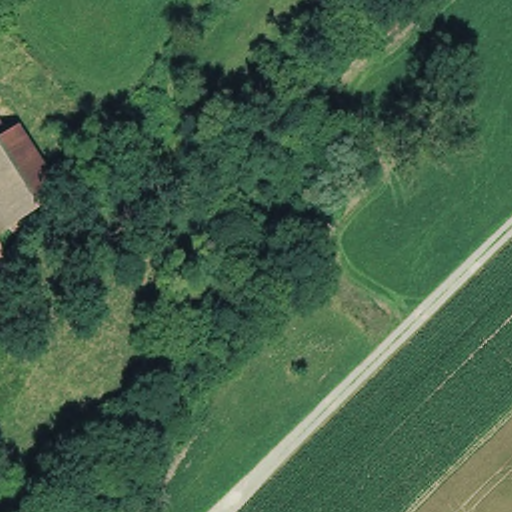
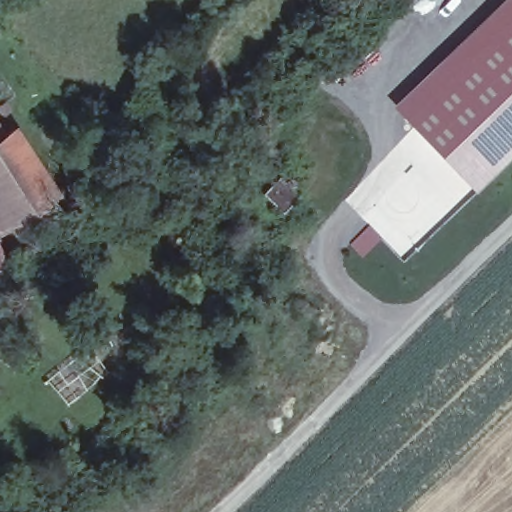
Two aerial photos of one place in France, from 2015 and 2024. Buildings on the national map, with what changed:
new [(512,157),(476,191),(393,106),(506,0),(512,0),(512,157)]
unchanged [(5,236),(0,229),(0,137),(5,134),(22,161),(45,197),(30,206),(37,216),(5,236)]
unchanged [(300,199),(285,215),(265,196),(280,179),(287,185),(294,178),(301,185),(295,193),(300,199)]

